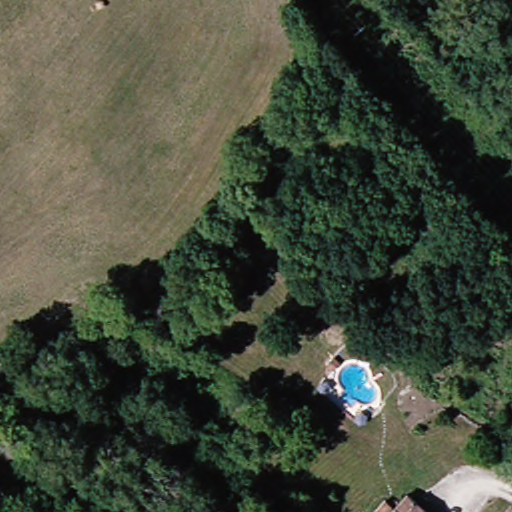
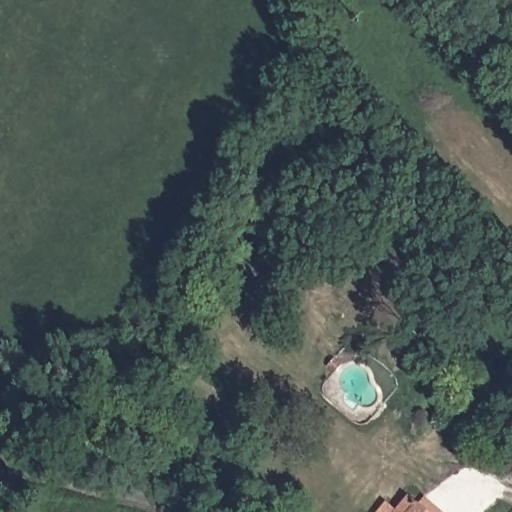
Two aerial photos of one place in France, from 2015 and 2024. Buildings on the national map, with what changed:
unchanged [(413,512),(401,512),(407,507),(413,512)]
unchanged [(486,512),(482,512),(484,510),(486,512)]

